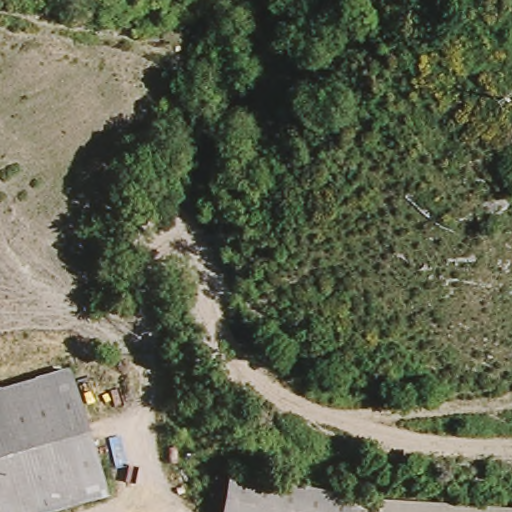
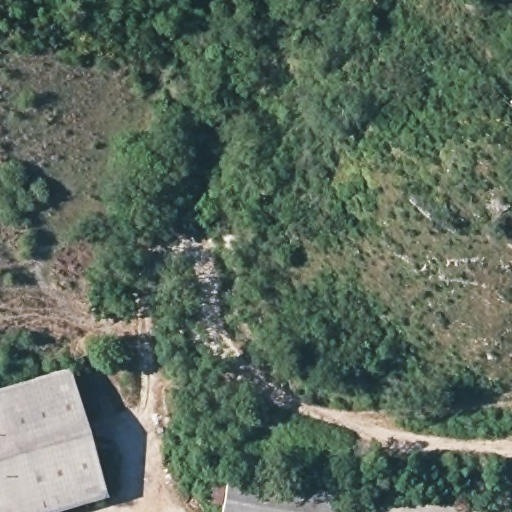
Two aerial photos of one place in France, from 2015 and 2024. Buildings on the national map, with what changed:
unchanged [(104,495),(46,512),(0,512),(0,385),(69,364),(104,495)]
unchanged [(512,509),(512,512),(222,512),(229,476),(374,501),(512,509)]

